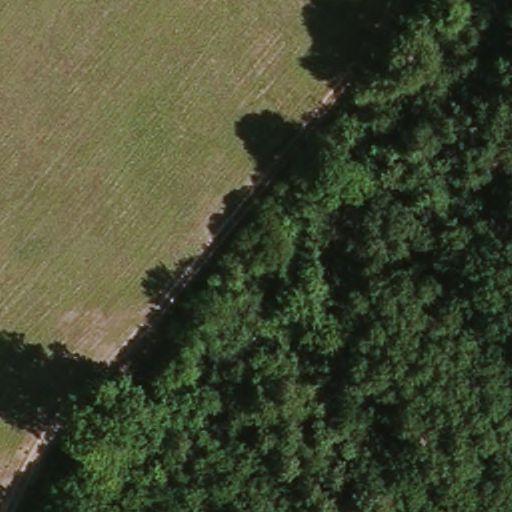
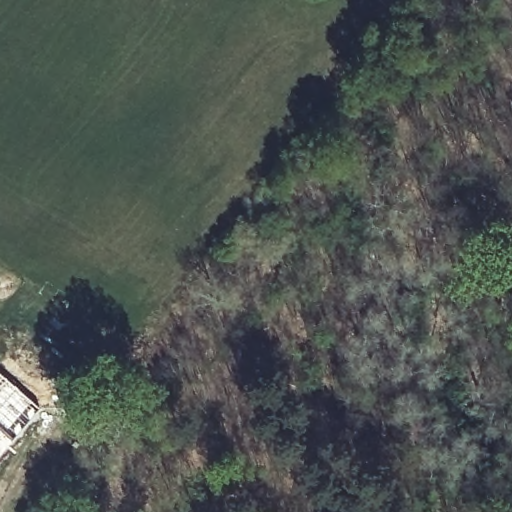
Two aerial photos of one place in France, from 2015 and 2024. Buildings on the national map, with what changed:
new [(40,410),(0,457),(0,374),(40,410)]

